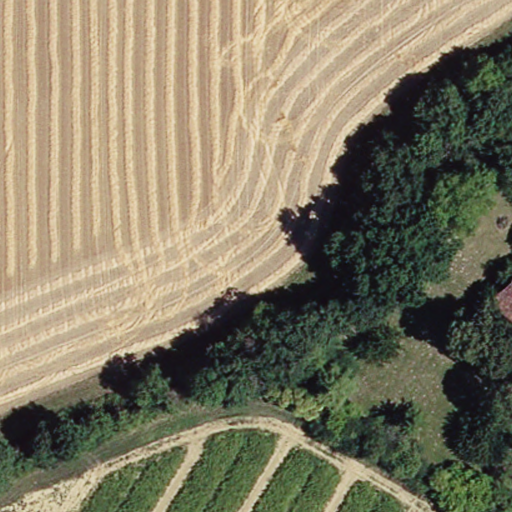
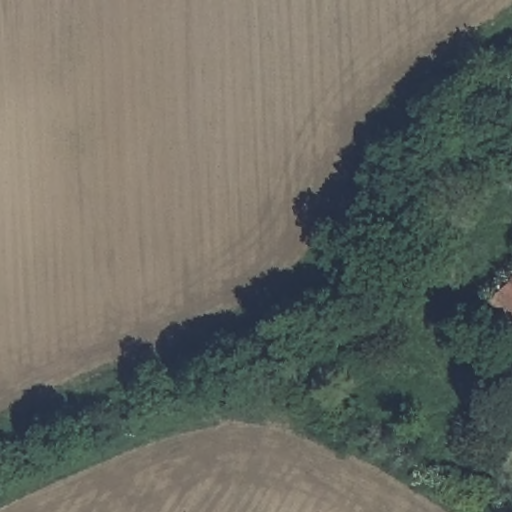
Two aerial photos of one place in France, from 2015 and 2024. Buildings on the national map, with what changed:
unchanged [(512,290),(512,310),(503,301),(512,290)]

